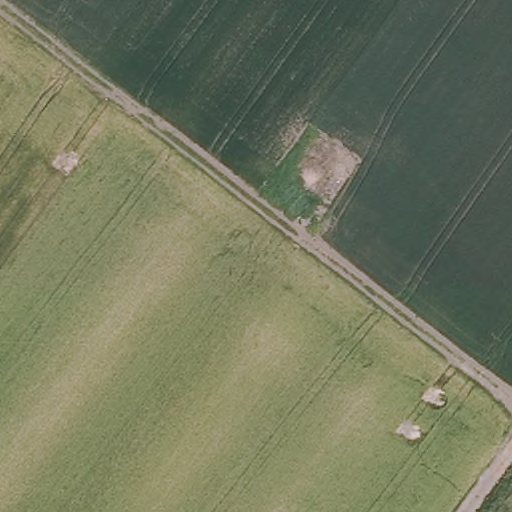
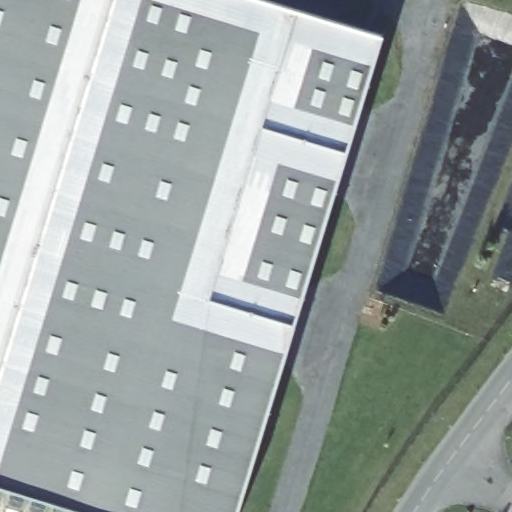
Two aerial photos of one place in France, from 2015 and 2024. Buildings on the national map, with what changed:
new [(232,512),(108,512),(0,479),(0,0),(290,0),(379,27),(232,512)]

